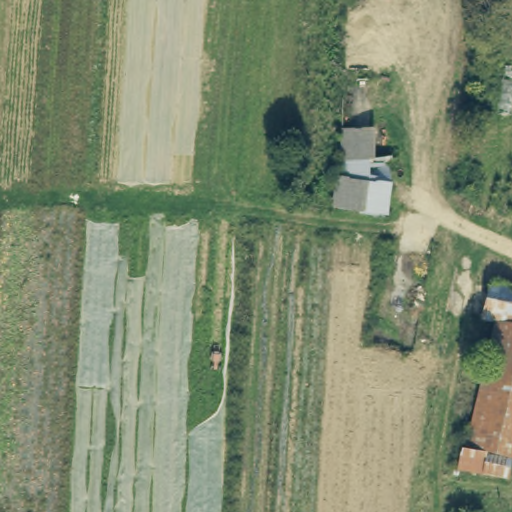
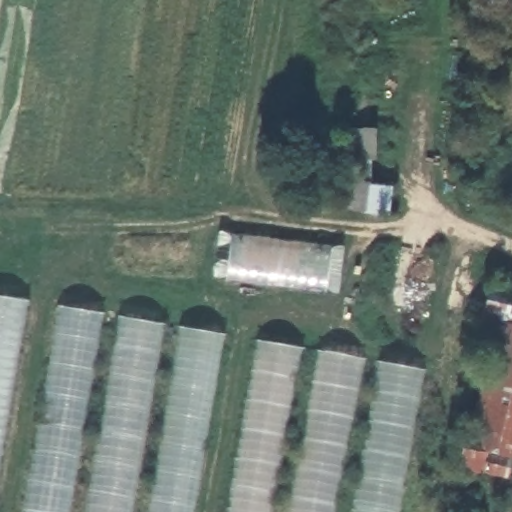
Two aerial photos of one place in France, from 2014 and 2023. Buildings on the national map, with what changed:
unchanged [(377,158),(346,157),(347,99),(378,99),(377,158)]
unchanged [(372,183),(365,209),(335,201),(341,175),(372,183)]
unchanged [(452,469),(457,450),(461,451),(490,322),(478,319),(486,284),(512,290),(512,427),(505,460),(501,479),(452,469)]
new [(25,512),(64,307),(431,373),(401,512),(25,512)]

